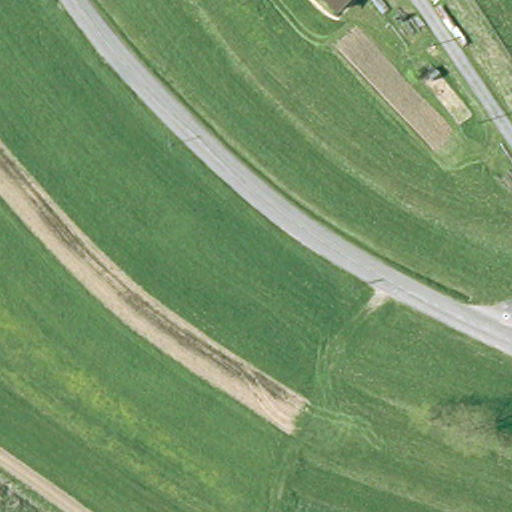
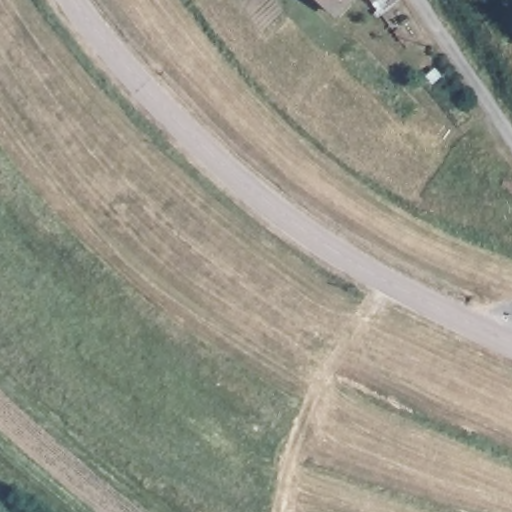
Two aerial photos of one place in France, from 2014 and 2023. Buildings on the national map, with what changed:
unchanged [(328,12),(317,0),(341,0),(328,12)]

